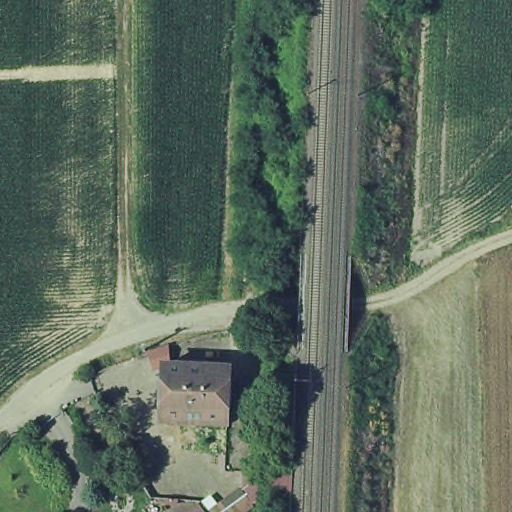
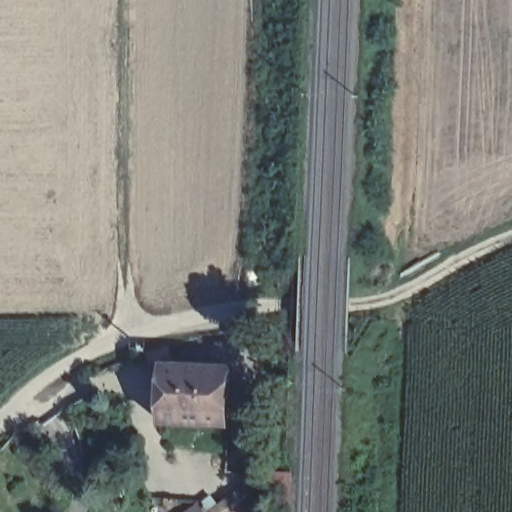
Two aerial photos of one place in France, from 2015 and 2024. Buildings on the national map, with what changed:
unchanged [(165,423),(167,368),(232,370),(230,426),(165,423)]
unchanged [(138,434),(138,468),(126,468),(126,434),(138,434)]
unchanged [(289,497),(272,497),(272,469),(288,468),(289,497)]
unchanged [(203,512),(190,512),(198,506),(203,512)]

